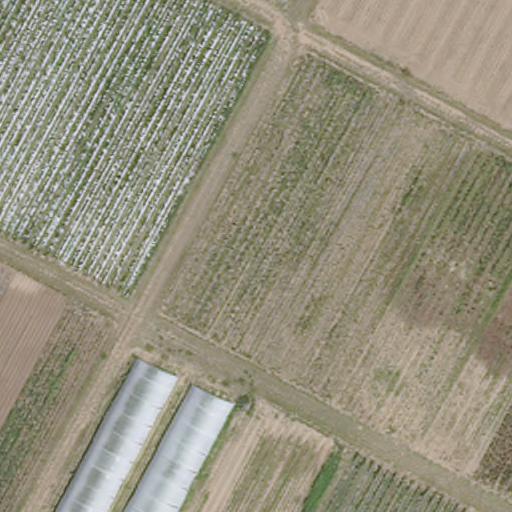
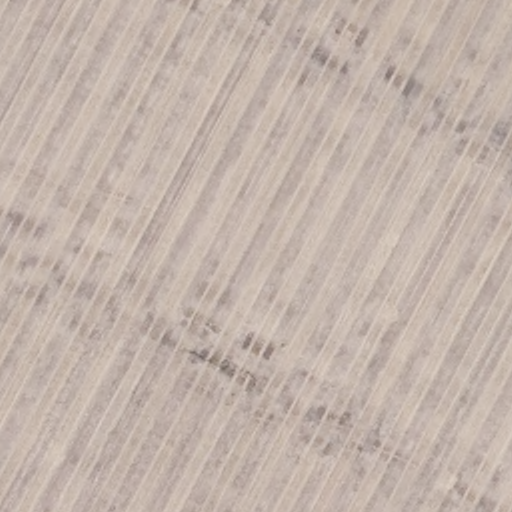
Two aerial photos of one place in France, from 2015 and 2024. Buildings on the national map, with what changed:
demolished [(181,379),(113,512),(58,512),(140,358),(181,379)]
demolished [(235,407),(181,512),(126,512),(192,383),(235,407)]

